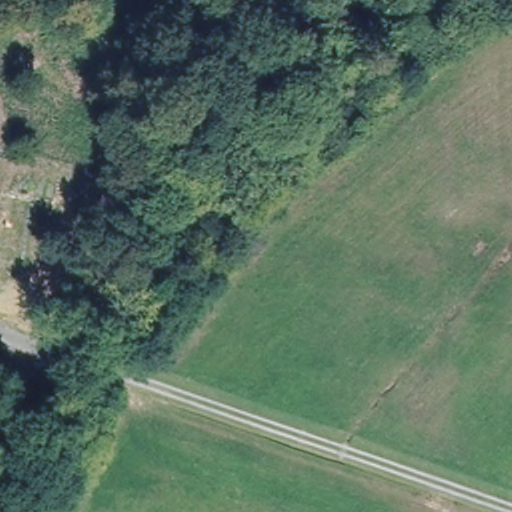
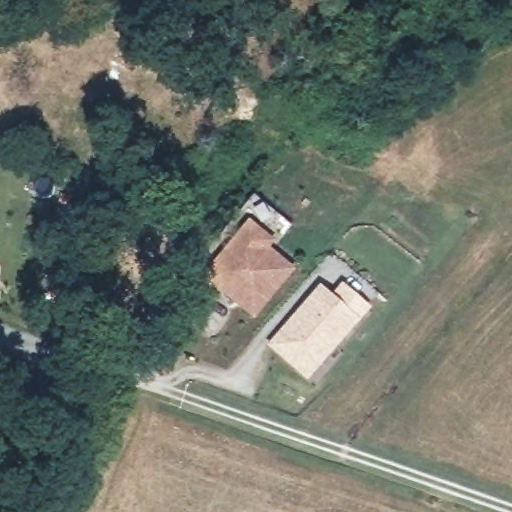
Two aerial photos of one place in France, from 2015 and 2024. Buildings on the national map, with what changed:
new [(224,290),(207,276),(250,221),(272,239),(267,245),(294,267),(257,313),(243,302),(241,304),(224,290)]
new [(296,360),(275,342),(323,285),(335,295),(346,283),(370,304),(321,362),(311,373),(296,360)]

